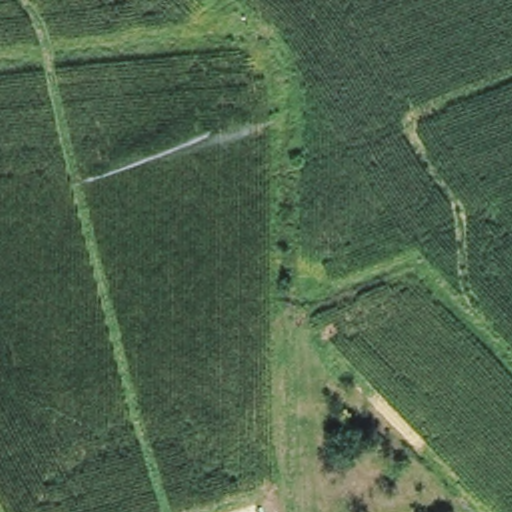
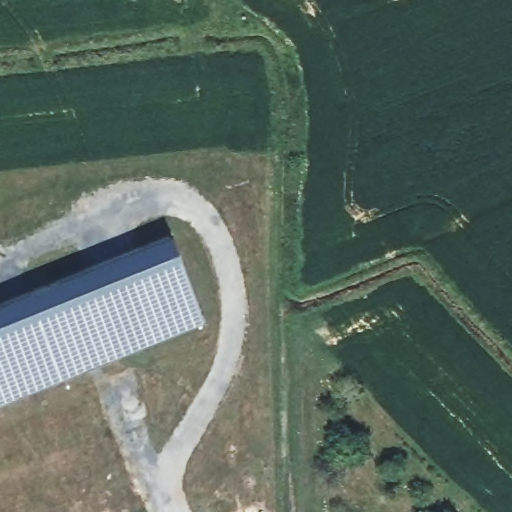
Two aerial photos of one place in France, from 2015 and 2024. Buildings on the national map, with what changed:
new [(187,323),(0,407),(0,306),(150,239),(187,323)]

